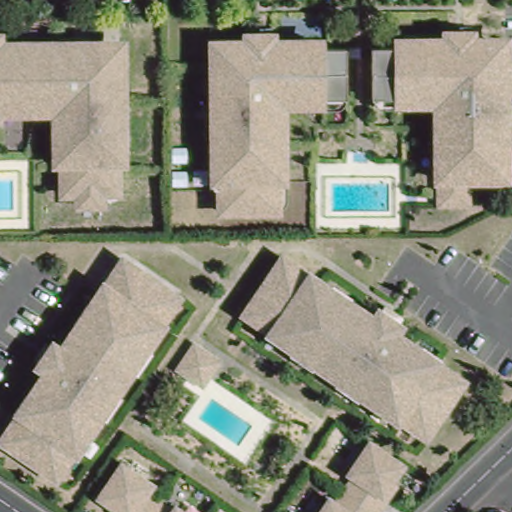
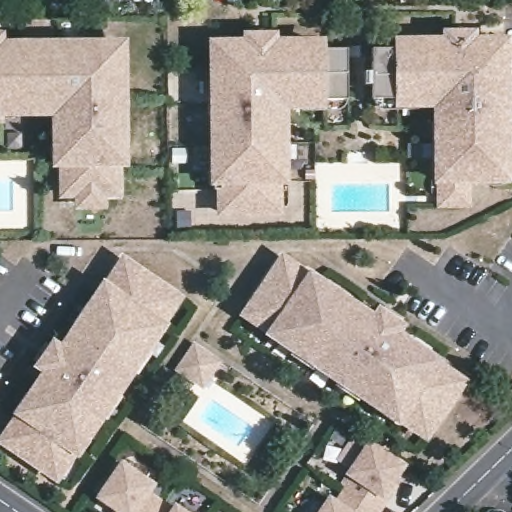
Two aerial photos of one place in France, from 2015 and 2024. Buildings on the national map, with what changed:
unchanged [(269,35),(269,41),(268,41),(268,51),(243,52),(243,42),(241,42),(241,35),(269,35)]
unchanged [(475,35),(476,41),(474,41),(474,51),(449,52),(449,41),(447,41),(447,35),(475,35)]
unchanged [(61,42),(61,49),(81,49),(81,42),(110,42),(110,55),(131,55),(133,141),(126,141),(126,190),(71,190),(71,141),(63,141),(63,110),(24,110),(24,105),(6,105),(6,116),(0,116),(0,38),(6,38),(6,49),(18,49),(19,41),(61,42)]
unchanged [(213,171),(211,115),(217,115),(216,95),(210,95),(209,67),(224,66),(224,42),(241,42),(243,52),(268,51),(268,41),(296,40),(315,40),(316,46),(343,45),(344,96),(301,97),(301,104),(281,104),(283,131),(276,131),(277,151),(283,151),(284,180),(278,180),(279,210),(221,212),(220,190),(213,190),(213,171)]
unchanged [(446,205),(445,197),(444,181),(441,181),(440,153),(446,152),(446,132),(439,132),(439,105),(419,106),(419,100),(376,101),(374,50),(402,50),(402,43),(420,42),(447,41),(449,41),(449,52),(474,51),(474,41),(493,40),(494,65),(509,65),(510,92),(504,92),(504,113),(510,113),(512,169),(512,184),(502,185),(502,180),(471,181),(471,196),(471,205),(446,205)]
unchanged [(83,451),(79,449),(68,468),(59,463),(54,470),(3,438),(20,410),(15,407),(25,392),(30,395),(44,371),(46,368),(40,365),(55,341),(61,345),(63,342),(78,318),(75,317),(85,301),(88,302),(102,279),(104,280),(121,254),(171,285),(166,292),(175,297),(163,317),(148,343),(148,345),(136,364),(135,363),(118,390),(121,391),(108,412),(105,410),(89,436),(91,437),(83,451)]
unchanged [(399,422),(385,413),(387,410),(361,393),(359,396),(339,383),(341,380),(314,363),(294,352),(295,351),(269,334),(270,332),(251,320),(256,311),(249,307),(281,257),(308,275),(309,273),(331,287),(333,285),(349,296),(347,298),(371,313),(373,315),(376,310),(399,325),(396,330),(399,332),(422,347),(424,343),(440,353),(438,357),(466,376),(433,427),(426,422),(420,431),(401,418),(399,422)]
unchanged [(196,384),(182,375),(176,371),(191,346),(198,350),(213,360),(196,384)]
unchanged [(376,506),(373,505),(352,490),(361,477),(346,467),(351,461),(344,457),(357,438),(364,442),(368,436),(396,455),(394,457),(401,461),(391,475),(395,478),(386,492),(376,506)]
unchanged [(125,463),(144,475),(151,480),(142,493),(154,502),(148,512),(124,512),(113,505),(117,498),(100,488),(119,459),(125,463)]
unchanged [(324,498),(328,492),(341,500),(349,487),(352,490),(373,505),(368,512),(305,512),(318,493),(324,498)]
unchanged [(173,501),(178,503),(191,512),(148,512),(154,502),(168,510),(173,501)]

